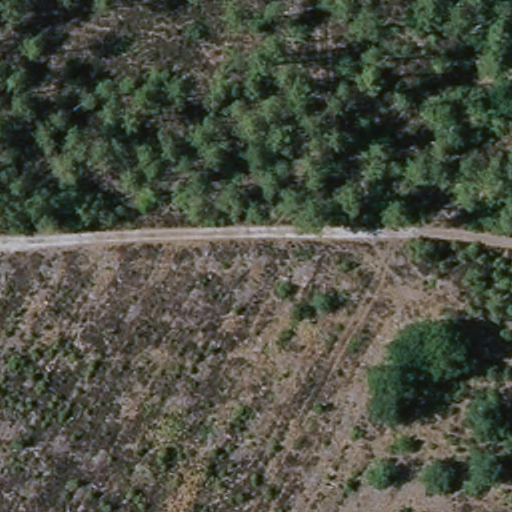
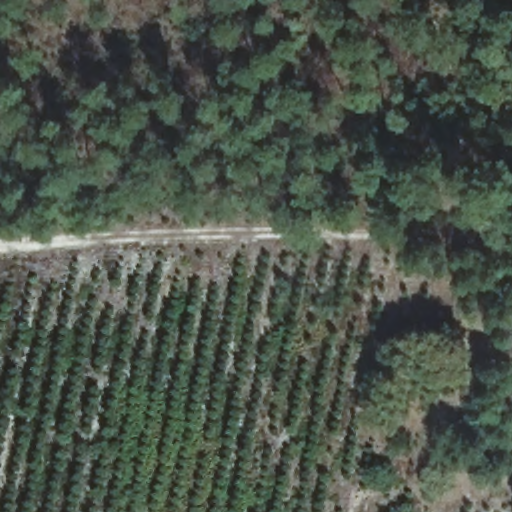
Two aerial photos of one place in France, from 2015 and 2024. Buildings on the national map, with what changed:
unchanged [(407,422),(369,414),(389,339),(427,350),(407,422)]

